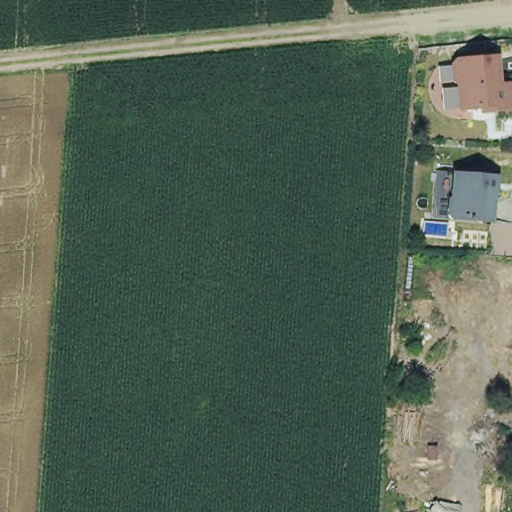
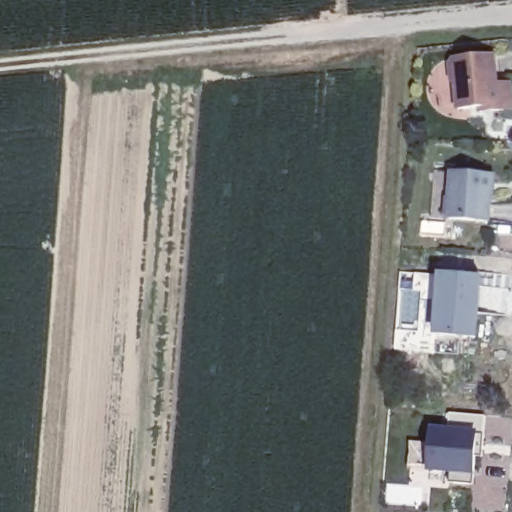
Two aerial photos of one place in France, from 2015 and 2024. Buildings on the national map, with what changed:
unchanged [(478,111),(456,113),(454,90),(449,86),(447,67),(452,62),(493,59),(495,86),(508,86),(510,113),(490,115),(478,116),(478,111)]
unchanged [(486,225),(447,223),(429,221),(432,174),(451,176),(489,178),(486,225)]
new [(479,340),(434,336),(439,273),(483,276),(479,340)]
new [(468,476),(423,476),(428,431),(472,431),(468,476)]

